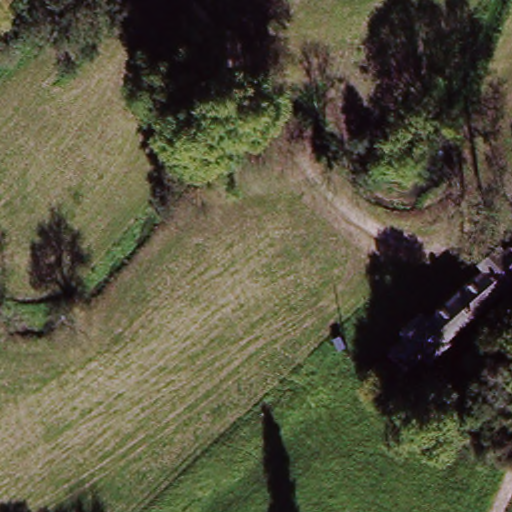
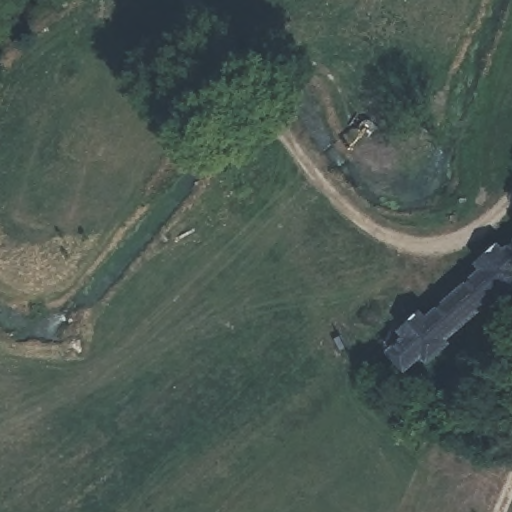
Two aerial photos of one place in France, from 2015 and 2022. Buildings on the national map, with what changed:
unchanged [(427,318),(481,272),(476,266),(498,247),(502,252),(512,244),(512,292),(505,297),(499,291),(443,340),(448,345),(426,365),(421,358),(395,382),(376,362),(404,337),(399,332),(422,312),(427,318)]

